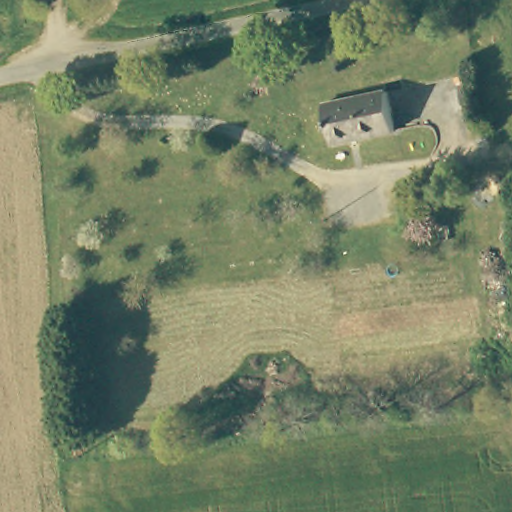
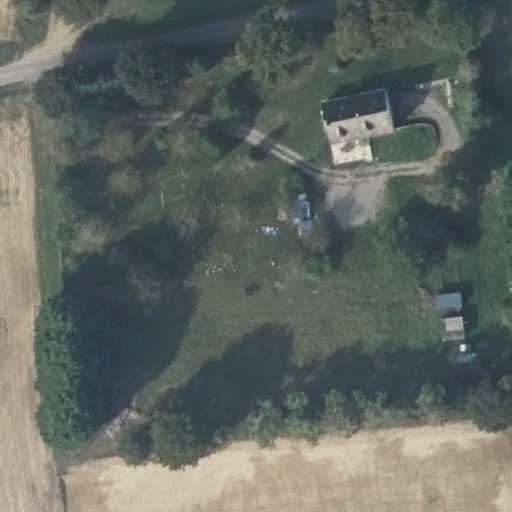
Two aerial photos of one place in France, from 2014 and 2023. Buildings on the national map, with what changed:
unchanged [(395,133),(335,146),(327,106),(387,94),(395,133)]

